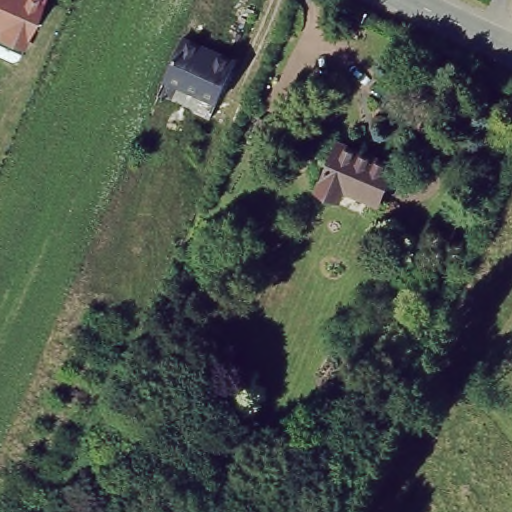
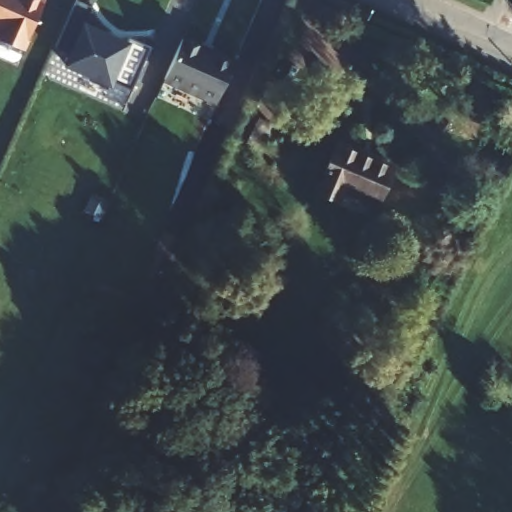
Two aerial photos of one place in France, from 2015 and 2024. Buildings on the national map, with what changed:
unchanged [(23,48),(0,38),(0,0),(42,0),(43,0),(23,48)]
new [(69,11),(85,19),(82,25),(123,43),(126,36),(148,46),(129,90),(50,55),(69,11)]
unchanged [(219,109),(171,88),(178,71),(194,35),(243,55),(226,92),(219,109)]
unchanged [(391,159),(374,200),(339,186),(335,195),(314,187),(336,137),(391,159)]

